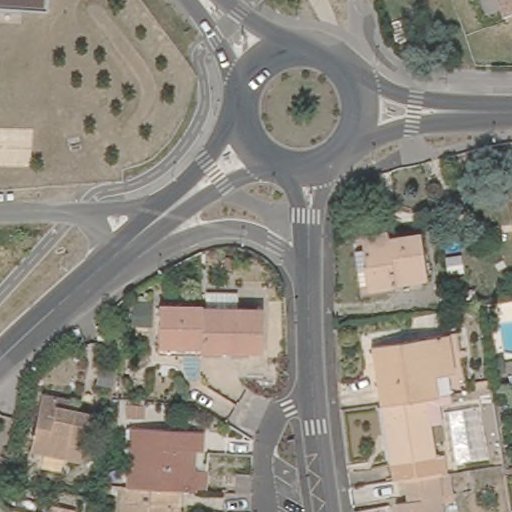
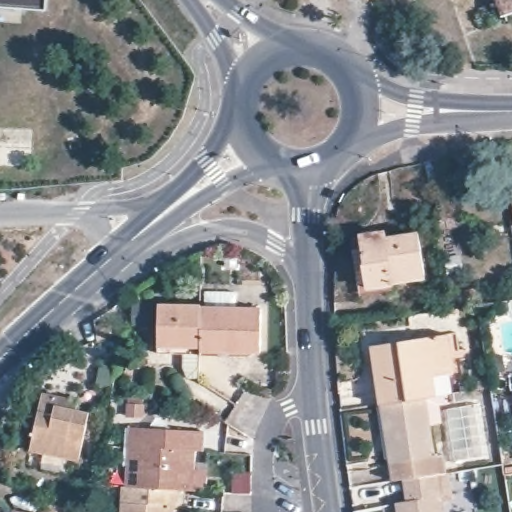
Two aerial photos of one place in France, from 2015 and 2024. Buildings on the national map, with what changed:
unchanged [(43,8),(0,6),(0,0),(43,0),(43,8)]
unchanged [(501,0),(512,0),(512,6),(504,8),(501,0)]
unchanged [(398,42),(391,23),(410,17),(417,36),(398,42)]
unchanged [(508,186),(512,185),(512,215),(508,186)]
unchanged [(421,277),(390,281),(388,284),(363,288),(359,268),(360,266),(357,245),(356,235),(380,232),(381,232),(382,239),(414,235),(421,277)]
unchanged [(159,341),(160,298),(202,299),(202,303),(201,346),(201,350),(184,350),(159,350),(159,341)]
unchanged [(202,303),(263,305),(262,347),(201,346),(202,303)]
unchanged [(373,342),(447,332),(453,369),(434,372),(437,392),(383,400),(373,342)]
unchanged [(383,400),(437,392),(452,389),(453,397),(441,399),(443,418),(431,420),(436,451),(444,450),(448,467),(438,468),(404,473),(394,475),(388,440),(386,424),(383,400)]
unchanged [(79,459),(31,450),(42,391),(70,396),(79,397),(77,407),(89,409),(79,459)]
unchanged [(209,472),(208,490),(187,489),(187,492),(179,491),(130,488),(132,468),(134,431),(134,429),(142,429),(205,433),(204,452),(198,451),(198,471),(209,472)]
unchanged [(407,497),(404,473),(438,468),(445,512),(401,512),(399,498),(407,497)]
unchanged [(179,508),(175,508),(169,507),(168,512),(124,512),(126,488),(130,488),(179,491),(179,508)]
unchanged [(72,507),(72,512),(58,512),(60,504),(72,507)]
unchanged [(43,512),(13,512),(14,507),(22,508),(43,512)]
unchanged [(167,512),(168,507),(169,507),(175,508),(175,512),(167,512)]

